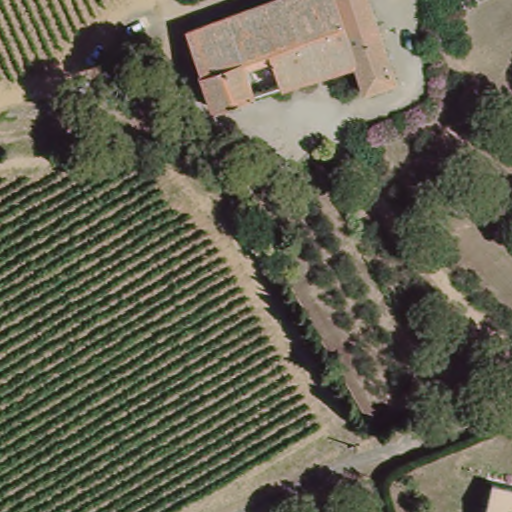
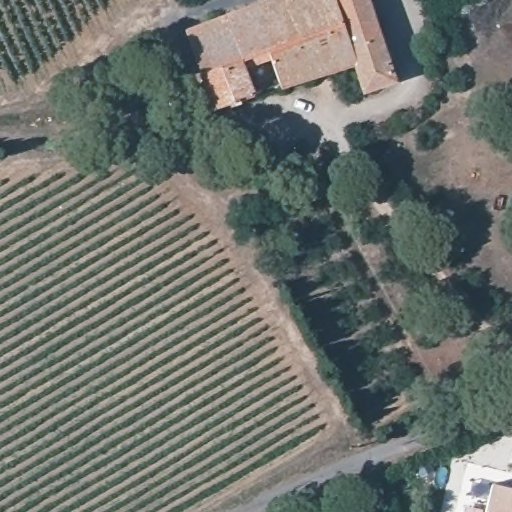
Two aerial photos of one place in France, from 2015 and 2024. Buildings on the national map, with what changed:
unchanged [(395,74),(361,87),(351,63),(213,102),(183,26),(186,25),(251,0),(368,0),(395,74)]
unchanged [(512,491),(512,512),(487,512),(495,487),(512,491)]

